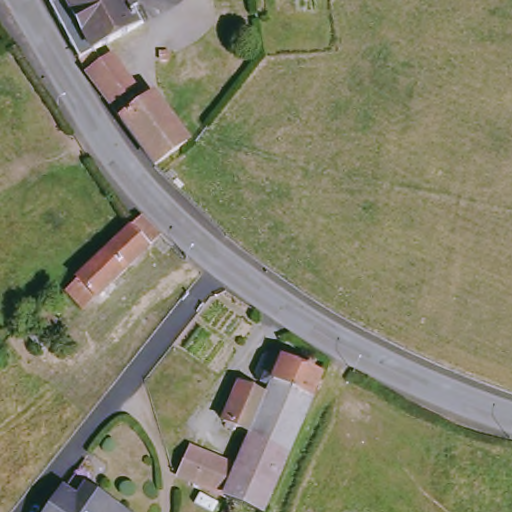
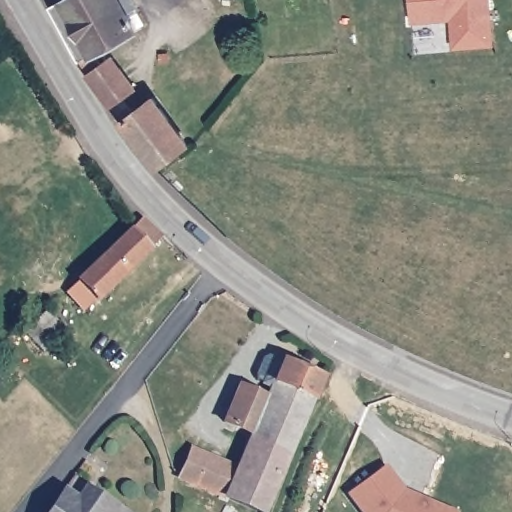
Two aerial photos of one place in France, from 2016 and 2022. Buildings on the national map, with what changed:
unchanged [(113,57),(136,87),(110,106),(90,79),(78,59),(50,7),(64,0),(132,0),(137,10),(136,11),(144,26),(137,29),(91,54),(100,67),(113,57)]
new [(457,16),(416,21),(413,0),(493,0),(494,2),(491,2),(496,41),(460,45),(457,16)]
unchanged [(138,114),(157,100),(191,145),(160,167),(126,121),(123,116),(129,111),(133,108),(138,114)]
unchanged [(125,273),(94,302),(93,300),(80,312),(65,297),(78,285),(76,285),(140,222),(158,239),(125,273)]
unchanged [(45,315),(63,332),(41,353),(23,336),(45,315)]
unchanged [(256,435),(229,422),(245,386),(274,398),(278,387),(264,382),(261,376),(269,357),(276,355),(325,377),(287,467),(250,451),(256,435)]
unchanged [(230,497),(184,478),(196,451),(241,470),(230,497)]
unchanged [(287,467),(268,512),(266,512),(230,497),(241,470),(250,451),(287,467)]
new [(441,512),(358,512),(349,500),(386,472),(404,496),(441,512)]
unchanged [(71,494),(89,507),(98,496),(119,512),(58,512),(71,494)]

